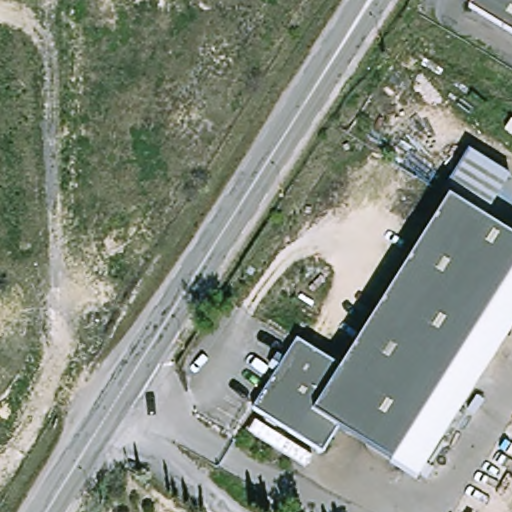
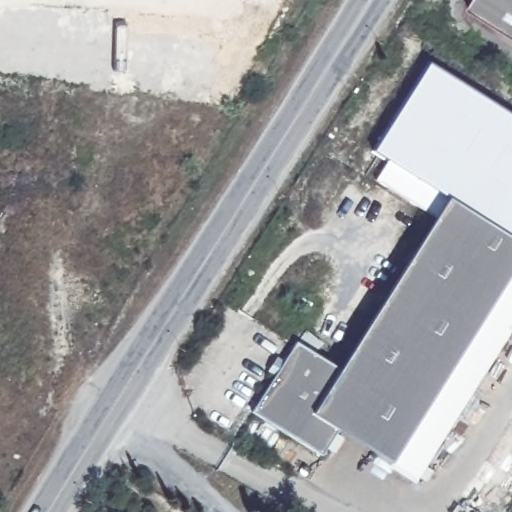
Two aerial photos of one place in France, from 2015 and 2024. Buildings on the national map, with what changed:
unchanged [(469,7),(473,0),(512,0),(512,35),(469,7)]
new [(376,181),(388,160),(373,151),(430,62),(512,115),(512,237),(484,220),(509,180),(511,179),(469,152),(442,194),(451,200),(438,220),(376,181)]
new [(511,179),(484,220),(451,200),(442,194),(469,152),(511,179)]
unchanged [(451,200),(512,238),(512,281),(475,337),(393,290),(451,200)]
unchanged [(417,480),(392,465),(475,337),(512,281),(512,331),(499,352),(417,480)]
unchanged [(392,465),(337,431),(321,456),(254,412),(299,340),(343,367),(393,290),(475,337),(392,465)]

